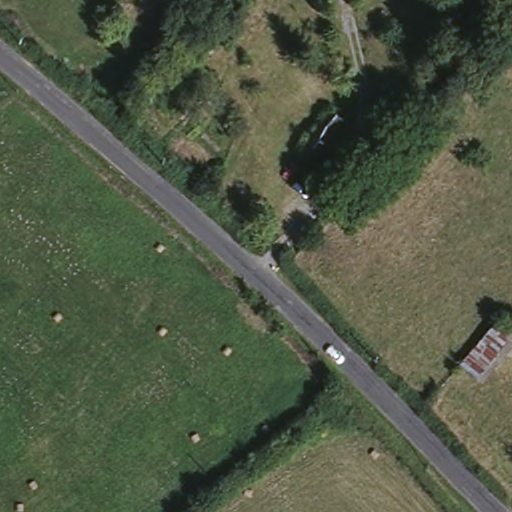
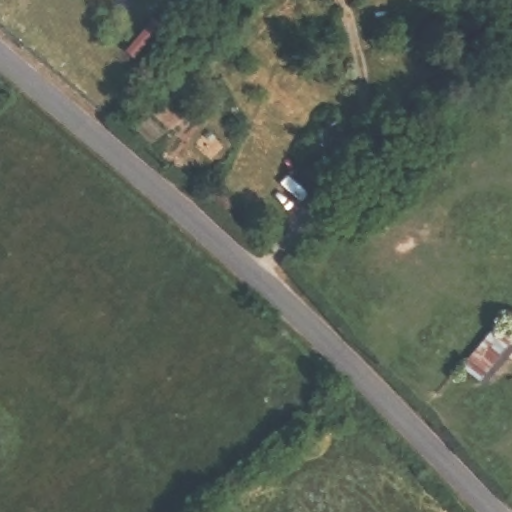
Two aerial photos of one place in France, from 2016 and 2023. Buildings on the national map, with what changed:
unchanged [(318,117),(335,127),(314,161),(297,151),(318,117)]
unchanged [(512,343),(476,380),(459,365),(495,328),(512,343)]

